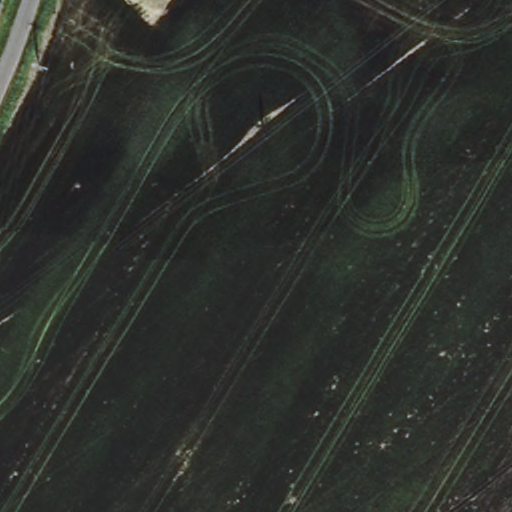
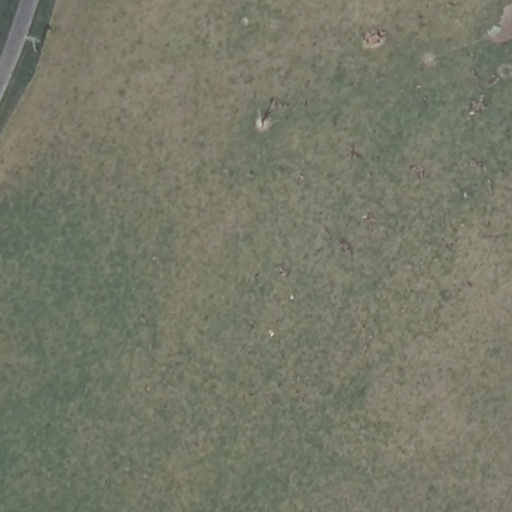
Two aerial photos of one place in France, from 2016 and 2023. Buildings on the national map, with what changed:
unchanged [(154,0),(183,0),(167,15),(154,0)]

